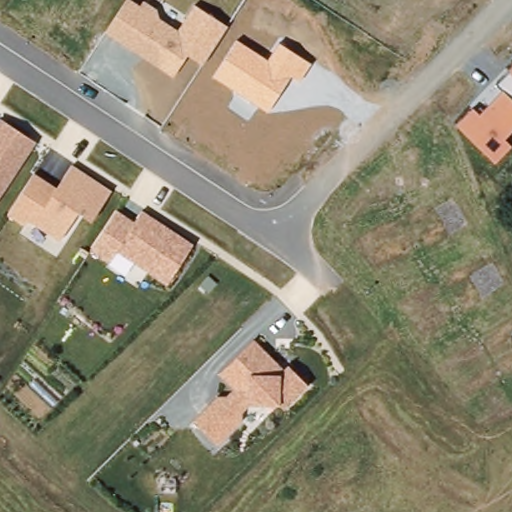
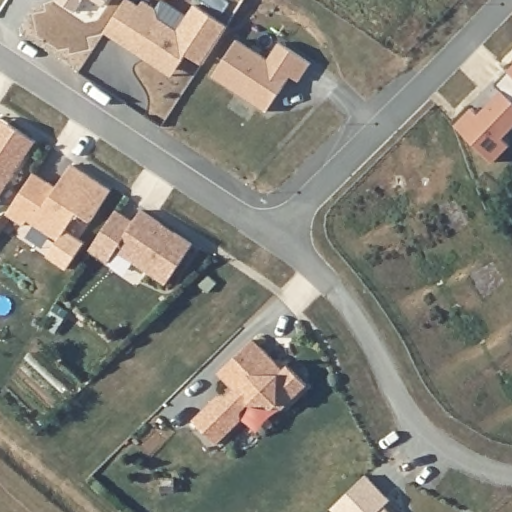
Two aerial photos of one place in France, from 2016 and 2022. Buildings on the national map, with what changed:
new [(76,13),(58,0),(84,0),(76,13)]
new [(105,5),(96,0),(107,0),(105,5)]
unchanged [(140,6),(143,1),(164,15),(161,21),(178,31),(194,6),(227,26),(203,64),(186,55),(171,76),(104,32),(124,0),(131,0),(140,6)]
unchanged [(214,77),(237,43),(266,61),(278,43),(311,64),(301,84),(291,77),(268,111),(214,77)]
unchanged [(473,107),(481,114),(502,90),(496,84),(512,68),(512,132),(505,140),(511,147),(494,162),(456,124),(473,107)]
unchanged [(0,194),(0,121),(34,142),(0,194)]
unchanged [(57,187),(72,165),(111,191),(91,223),(76,212),(56,242),(26,222),(23,227),(5,215),(34,172),(57,187)]
unchanged [(135,221),(141,212),(192,246),(166,285),(116,252),(106,264),(88,252),(115,209),(135,221)]
unchanged [(279,364),(291,364),(309,382),(285,406),(280,403),(253,402),(248,402),(243,407),(244,416),(220,442),(195,420),(216,399),(228,395),(235,387),(221,373),(255,340),(279,364)]
new [(368,475),(390,502),(384,508),(389,512),(333,512),(331,510),(368,475)]

